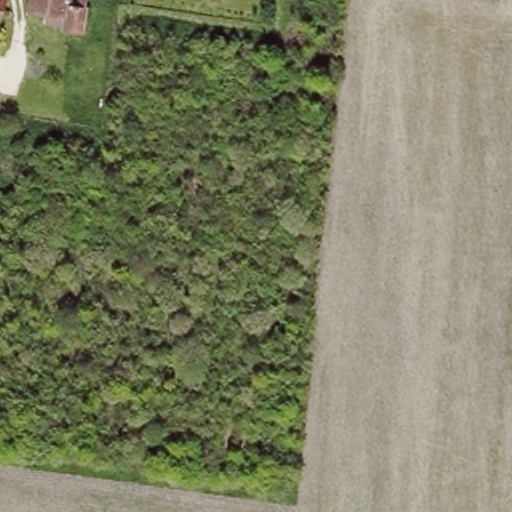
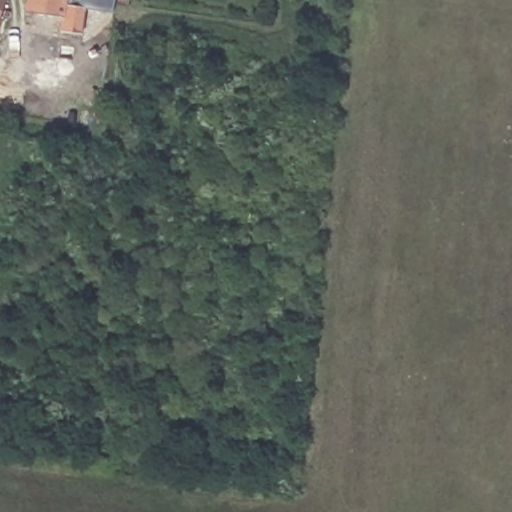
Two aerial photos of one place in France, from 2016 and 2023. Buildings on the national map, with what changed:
unchanged [(3,0),(0,11),(0,0),(3,0)]
unchanged [(27,8),(28,1),(25,0),(85,0),(82,31),(61,26),(62,19),(43,18),(44,10),(27,8)]

